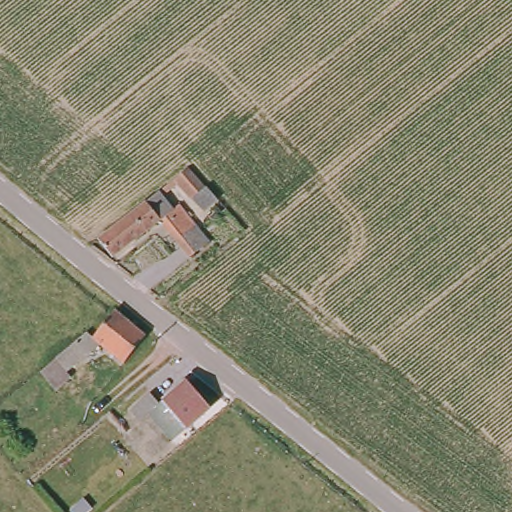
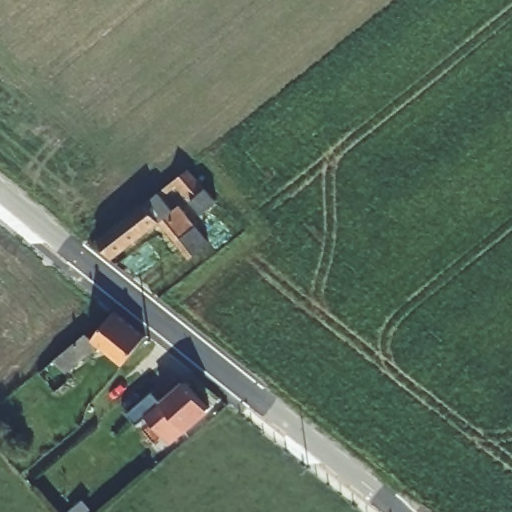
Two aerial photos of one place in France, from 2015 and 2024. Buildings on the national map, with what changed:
unchanged [(184,169),(214,206),(199,218),(169,181),(184,169)]
unchanged [(158,189),(202,243),(182,260),(154,226),(109,262),(90,243),(158,189)]
unchanged [(145,336),(120,366),(95,344),(65,369),(71,376),(53,391),(35,371),(82,333),(89,339),(112,309),(145,336)]
unchanged [(212,410),(172,445),(147,416),(140,423),(131,414),(152,396),(160,406),(187,383),(212,410)]
unchanged [(160,454),(150,464),(126,435),(137,426),(160,454)]

